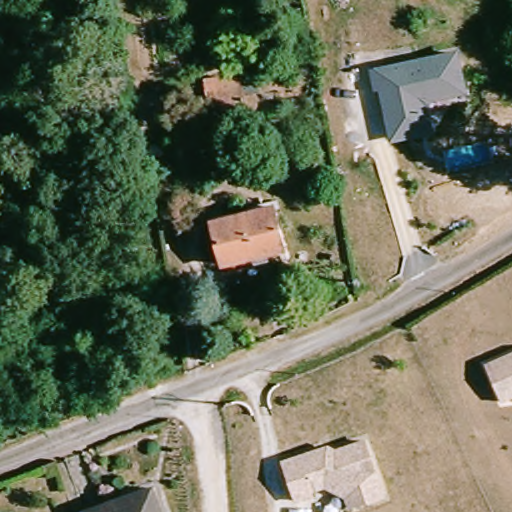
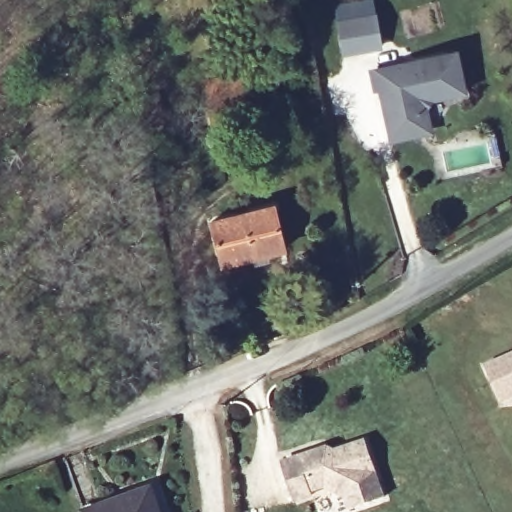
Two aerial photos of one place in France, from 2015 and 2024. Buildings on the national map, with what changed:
new [(340,19),(337,4),(360,0),(374,0),(376,12),(382,47),(344,54),(338,19),(340,19)]
unchanged [(460,49),(469,89),(426,102),(434,131),(394,140),(382,89),(375,88),(372,67),(460,49)]
unchanged [(255,75),(257,92),(241,95),(246,122),(214,127),(206,83),(255,75)]
unchanged [(142,141),(135,98),(159,94),(166,135),(142,141)]
unchanged [(222,266),(211,222),(273,206),(283,251),(222,266)]
unchanged [(486,365),(512,354),(512,398),(502,402),(486,365)]
unchanged [(386,497),(352,508),(348,496),(326,486),(312,491),(315,495),(296,501),(283,463),(322,450),(330,454),(366,441),(386,497)]
unchanged [(161,512),(85,512),(152,488),(161,512)]

